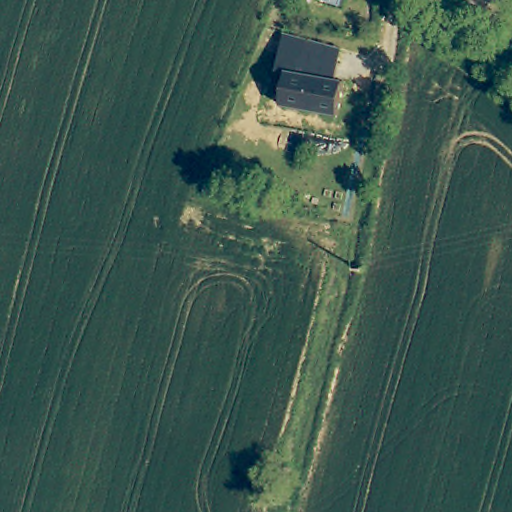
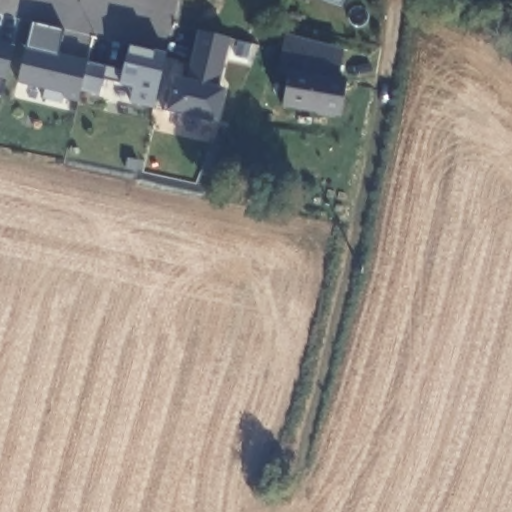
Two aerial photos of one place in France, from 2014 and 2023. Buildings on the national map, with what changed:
new [(128,101),(131,86),(100,78),(98,94),(78,90),(77,101),(63,97),(62,104),(43,100),(45,88),(18,81),(32,23),(62,30),(57,54),(119,69),(126,44),(165,51),(153,106),(128,101)]
new [(166,110),(174,77),(185,80),(195,29),(227,36),(216,87),(223,88),(215,122),(166,110)]
unchanged [(283,91),(272,88),(286,34),(343,50),(336,80),(346,82),(338,117),(281,105),(283,91)]
new [(0,42),(13,45),(5,78),(0,77),(0,42)]

